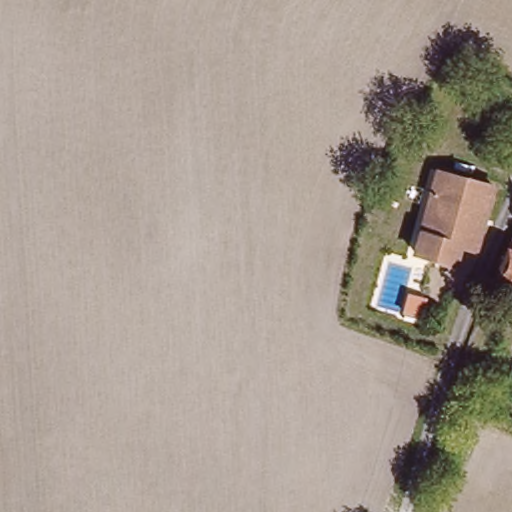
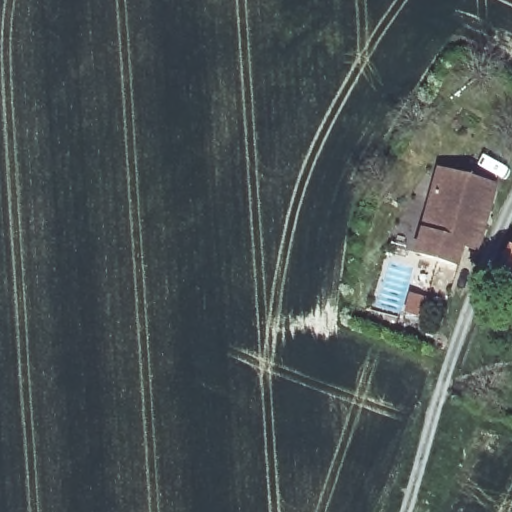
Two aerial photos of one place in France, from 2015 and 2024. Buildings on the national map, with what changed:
unchanged [(483,250),(466,246),(460,271),(423,262),(445,178),(498,192),(483,250)]
unchanged [(510,249),(512,249),(512,304),(491,295),(510,249)]
unchanged [(407,310),(411,291),(427,295),(422,313),(407,310)]

